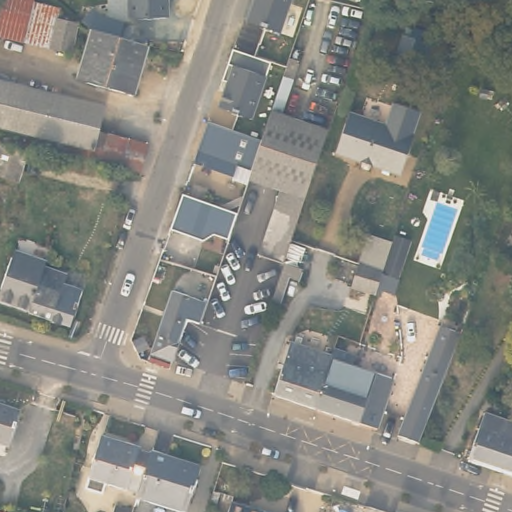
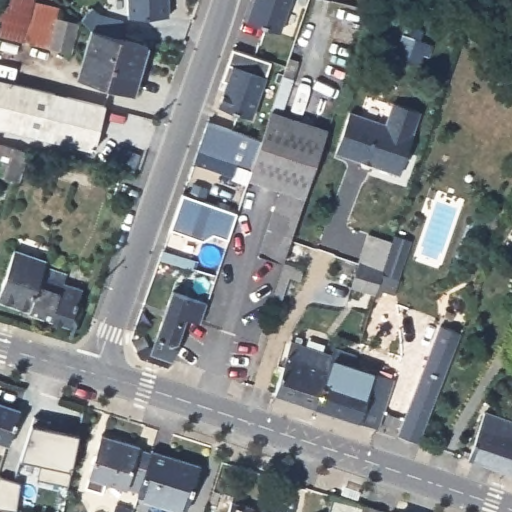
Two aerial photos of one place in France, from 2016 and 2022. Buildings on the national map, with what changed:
unchanged [(0,34),(0,0),(46,0),(55,1),(53,13),(72,17),(74,17),(70,46),(65,45),(0,34)]
unchanged [(170,15),(130,16),(130,0),(170,0),(170,15)]
unchanged [(280,30),(245,19),(252,0),(291,0),(280,30)]
unchanged [(139,88),(81,72),(94,26),(94,24),(151,39),(139,88)]
unchanged [(273,61),(254,118),(220,107),(229,80),(222,78),(234,46),(273,61)]
unchanged [(110,110),(104,134),(99,153),(44,138),(0,127),(0,80),(60,96),(110,110)]
unchanged [(282,254),(256,247),(277,181),(246,172),(248,168),(258,137),(270,105),(323,121),(302,189),(282,254)]
unchanged [(386,127),(393,105),(420,114),(412,135),(413,136),(400,176),(336,154),(350,114),(386,127)]
unchanged [(206,120),(258,137),(248,168),(237,165),(234,175),(195,161),(206,120)]
unchanged [(1,141),(0,145),(0,141),(1,141)]
unchanged [(20,182),(0,177),(0,145),(29,154),(20,182)]
unchanged [(183,190),(236,211),(227,237),(213,233),(204,240),(170,228),(183,190)]
unchanged [(391,291),(380,287),(378,287),(376,295),(352,288),(360,266),(369,237),(392,245),(383,274),(395,277),(391,291)]
unchanged [(49,262),(46,268),(69,277),(66,284),(85,292),(71,328),(28,313),(29,311),(0,301),(0,300),(17,250),(49,262)]
unchanged [(295,272),(287,269),(278,299),(268,296),(282,254),(299,259),(295,272)]
unchanged [(175,284),(210,295),(204,314),(190,310),(176,352),(155,345),(175,284)]
unchanged [(176,352),(190,310),(204,314),(211,317),(198,359),(176,352)]
unchanged [(440,333),(460,341),(422,444),(401,437),(440,333)]
unchanged [(277,395),(286,366),(281,364),(287,344),(293,347),(295,342),(335,355),(316,408),(277,395)]
unchanged [(316,408),(335,355),(336,350),(358,357),(355,368),(390,379),(386,389),(393,392),(380,430),(316,408)]
unchanged [(27,409),(15,445),(0,441),(0,401),(27,409)]
unchanged [(512,419),(512,470),(472,456),(486,411),(512,419)]
unchanged [(141,485),(110,474),(105,487),(89,482),(93,470),(91,468),(104,432),(140,443),(139,447),(152,452),(141,485)]
unchanged [(200,464),(186,506),(140,491),(141,485),(152,452),(153,449),(200,464)]
unchanged [(137,500),(133,512),(116,512),(122,494),(137,500)]
unchanged [(264,512),(237,512),(240,504),(264,512)]
unchanged [(369,512),(370,509),(380,512),(369,512)]

